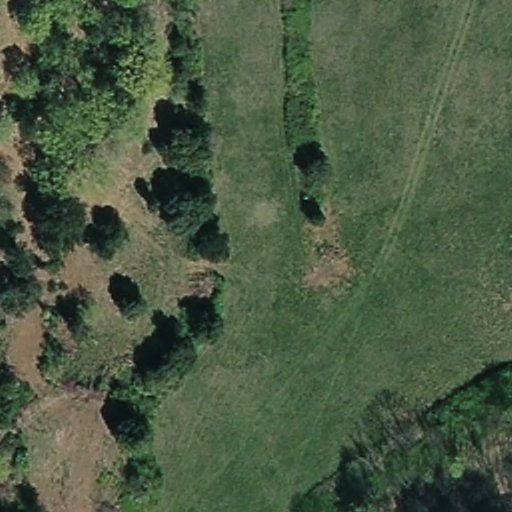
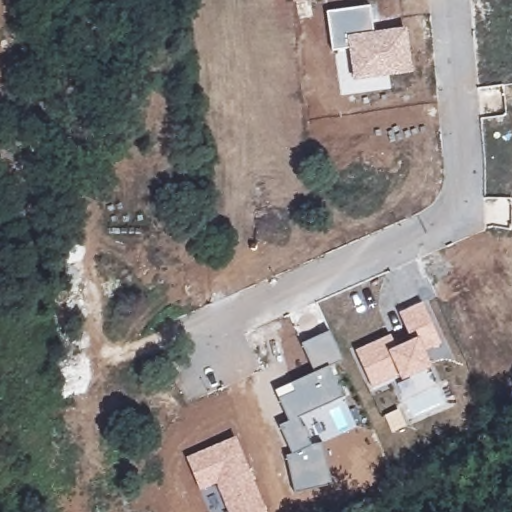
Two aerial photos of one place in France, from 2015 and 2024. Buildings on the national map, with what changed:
new [(293,1),(293,0),(308,0),(293,1)]
new [(353,80),(349,47),(332,50),(326,10),(370,5),(373,31),(407,27),(413,72),(353,80)]
new [(432,322),(442,343),(424,349),(432,366),(402,380),(400,375),(373,386),(355,350),(391,334),(394,340),(408,333),(399,312),(423,301),(432,322)]
new [(296,416),(302,428),(306,426),(310,436),(306,438),(310,445),(322,442),(332,483),(296,492),(286,455),(293,453),(279,425),(289,421),(279,397),(294,390),(291,383),(315,371),(302,343),(329,331),(343,359),(329,366),(343,396),(296,416)]
new [(200,490),(186,456),(236,435),(267,512),(228,512),(216,483),(200,490)]

